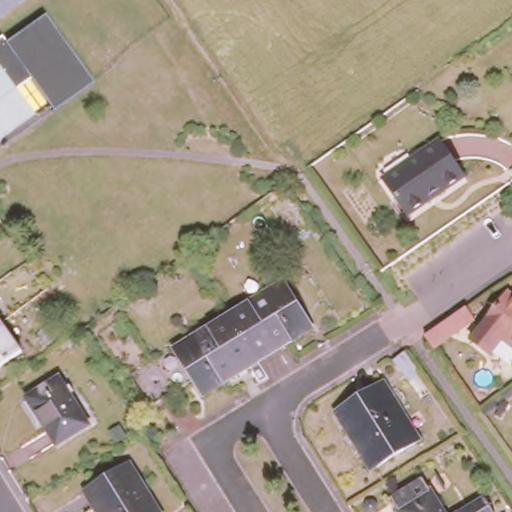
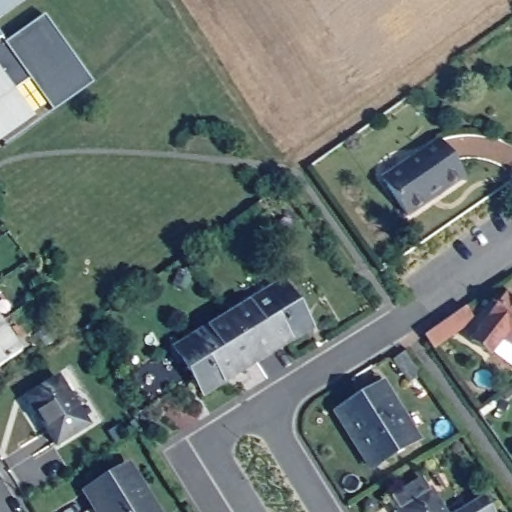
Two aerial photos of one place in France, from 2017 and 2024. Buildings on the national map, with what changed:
unchanged [(0,0),(26,0),(0,19),(0,0)]
unchanged [(5,42),(43,15),(93,83),(54,112),(47,104),(35,112),(0,64),(0,37),(1,37),(5,42)]
unchanged [(0,141),(0,64),(35,112),(0,141)]
unchanged [(436,134),(461,171),(405,210),(380,172),(436,134)]
unchanged [(281,282),(309,327),(256,360),(228,315),(281,282)]
unchanged [(501,338),(490,355),(470,340),(482,324),(506,292),(512,295),(512,346),(501,338)]
unchanged [(201,393),(173,348),(228,315),(256,360),(201,393)]
unchanged [(0,365),(0,321),(21,351),(0,365)]
unchanged [(414,391),(407,381),(393,358),(405,350),(420,372),(417,373),(425,383),(414,391)]
unchanged [(148,405),(129,373),(151,359),(171,392),(148,405)]
unchanged [(55,442),(25,396),(56,376),(86,423),(55,442)]
unchanged [(370,467),(335,410),(380,382),(416,438),(370,467)]
unchanged [(157,512),(97,512),(96,511),(83,489),(94,482),(126,462),(157,512)]
unchanged [(390,497),(421,477),(443,512),(399,512),(390,497)]
unchanged [(482,497),(491,512),(458,512),(482,497)]

